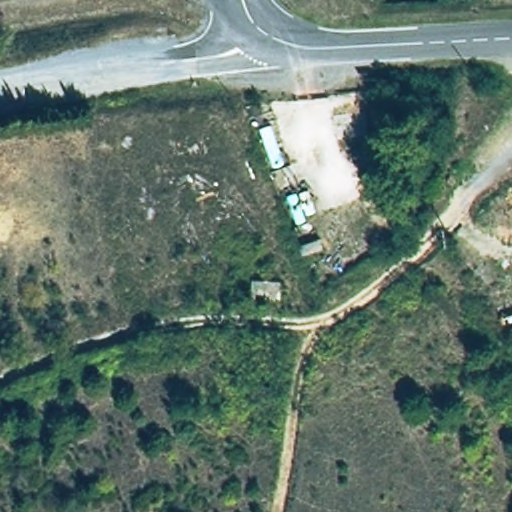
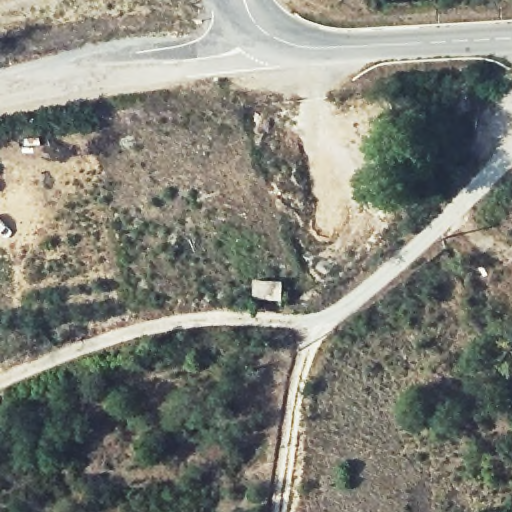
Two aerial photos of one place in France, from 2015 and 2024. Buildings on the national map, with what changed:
unchanged [(252,298),(252,281),(282,283),(282,302),(252,298)]

